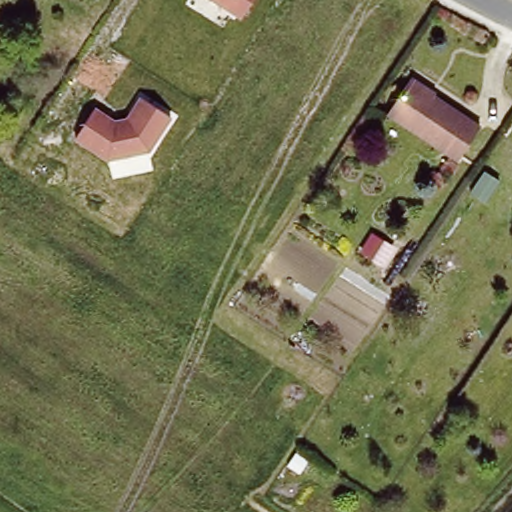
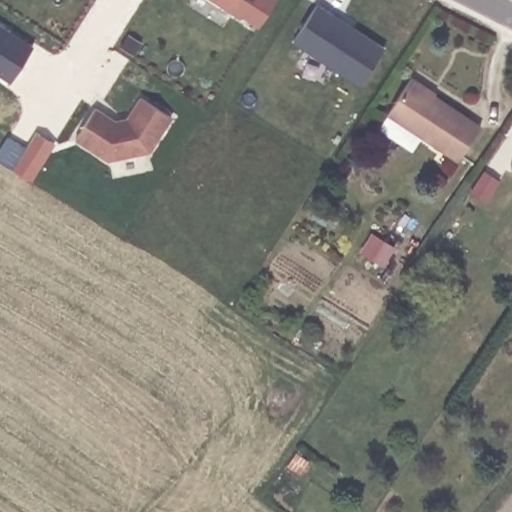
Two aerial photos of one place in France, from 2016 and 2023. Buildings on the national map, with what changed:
unchanged [(241,20),(210,0),(254,0),(241,20)]
new [(261,28),(243,17),(254,0),(279,0),(261,28)]
new [(361,86),(294,44),(318,5),(386,46),(361,86)]
new [(8,84),(0,79),(0,32),(28,50),(8,84)]
unchanged [(474,134),(453,165),(383,115),(408,81),(423,93),(422,96),(474,134)]
unchanged [(96,108),(113,120),(126,119),(138,99),(171,116),(151,150),(105,161),(74,140),(96,108)]
new [(33,181),(15,171),(38,132),(58,144),(33,181)]

